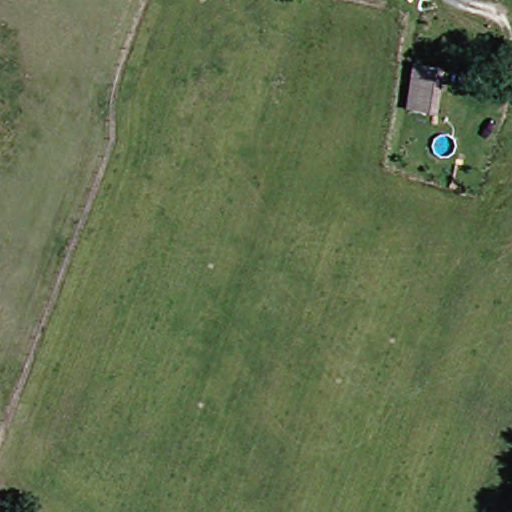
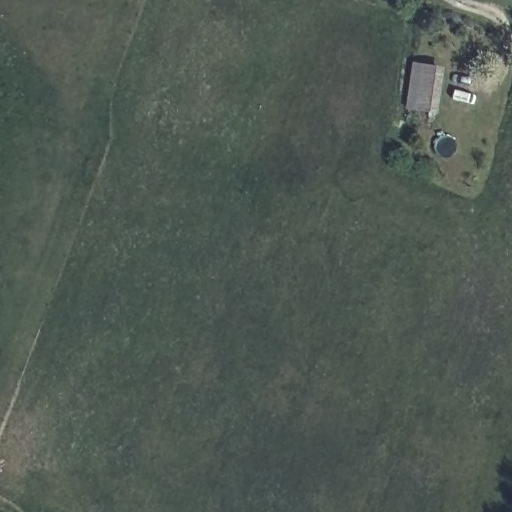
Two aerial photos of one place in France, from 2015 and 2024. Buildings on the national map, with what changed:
unchanged [(428,51),(422,107),(399,104),(407,48),(428,51)]

